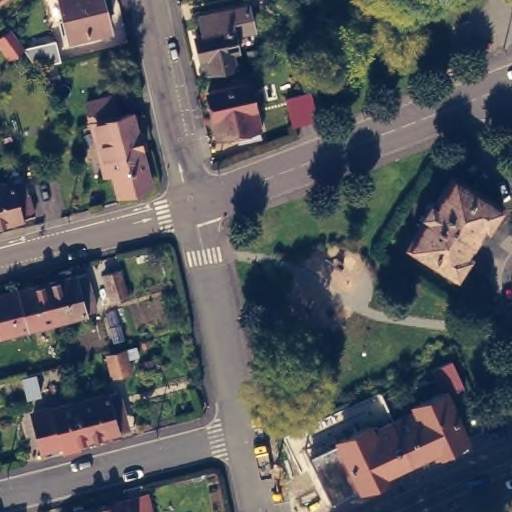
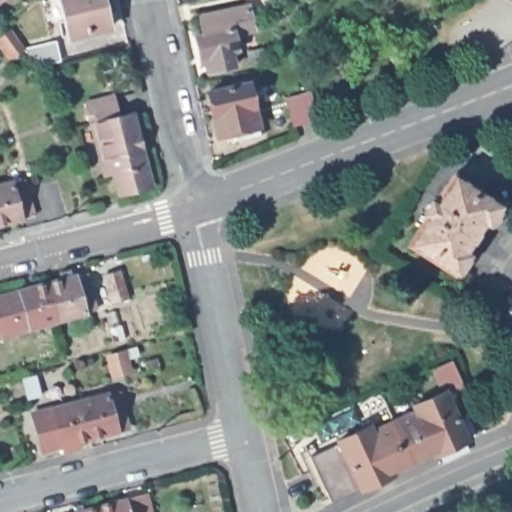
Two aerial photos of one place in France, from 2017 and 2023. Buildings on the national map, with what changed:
unchanged [(111,21),(115,38),(75,48),(62,0),(106,0),(108,7),(115,6),(117,20),(111,21)]
unchanged [(253,24),(233,28),(237,45),(231,46),(235,61),(208,67),(205,53),(200,54),(196,31),(205,29),(202,14),(248,3),(253,24)]
unchanged [(25,49),(55,41),(60,61),(37,67),(25,49)]
unchanged [(260,131),(238,136),(236,128),(218,132),(208,88),(249,79),(260,131)]
unchanged [(293,126),(285,100),(311,93),(318,120),(293,126)]
unchanged [(124,194),(115,156),(110,158),(95,104),(117,98),(123,118),(136,114),(142,135),(135,136),(138,150),(145,148),(155,186),(124,194)]
unchanged [(453,175),(497,204),(495,208),(501,212),(493,225),(486,221),(465,256),(470,260),(462,273),(455,269),(453,273),(409,245),(427,217),(424,215),(433,201),(435,203),(453,175)]
unchanged [(7,183),(7,184),(18,181),(22,195),(24,195),(30,216),(0,224),(0,184),(7,183)]
unchanged [(47,279),(61,276),(60,268),(70,265),(72,272),(86,269),(98,309),(85,313),(83,309),(58,315),(47,279)]
unchanged [(112,303),(104,276),(120,271),(128,298),(112,303)]
unchanged [(31,323),(35,336),(23,340),(19,325),(15,310),(26,307),(20,286),(47,279),(58,315),(31,323)]
unchanged [(115,376),(109,356),(124,352),(130,372),(115,376)]
unchanged [(455,388),(452,380),(445,383),(437,365),(457,356),(469,382),(455,388)]
unchanged [(38,394),(33,374),(46,371),(51,392),(38,394)]
unchanged [(440,450),(438,446),(417,456),(401,416),(421,406),(418,401),(450,386),(473,436),(440,450)]
unchanged [(90,397),(117,390),(117,391),(129,388),(133,402),(122,406),(127,426),(100,433),(90,397)]
unchanged [(87,437),(88,443),(76,446),(75,440),(72,440),(71,439),(60,442),(50,402),(61,399),(62,404),(90,397),(100,433),(87,437)]
unchanged [(37,434),(31,411),(45,408),(50,430),(37,434)]
unchanged [(417,456),(397,465),(398,470),(366,485),(343,436),(375,421),(377,427),(401,416),(417,456)]
unchanged [(336,439),(324,444),(314,423),(325,418),(336,439)]
unchanged [(103,503),(151,491),(157,512),(105,512),(103,503)]
unchanged [(80,509),(78,502),(87,499),(89,507),(103,503),(105,512),(64,512),(80,509)]

